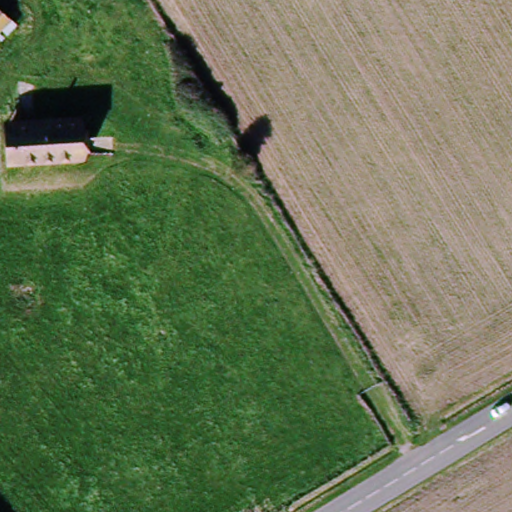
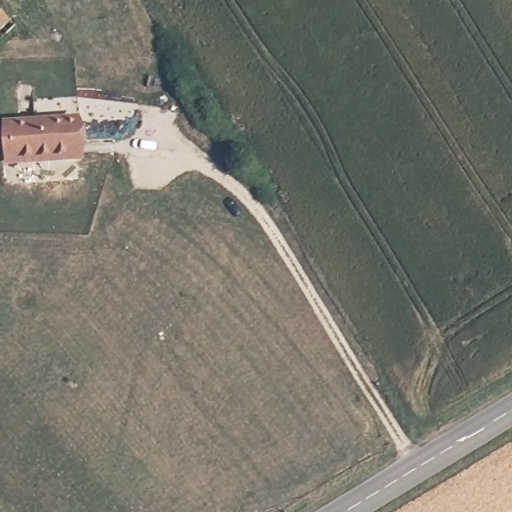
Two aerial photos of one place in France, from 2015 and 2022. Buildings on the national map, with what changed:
unchanged [(0,31),(0,13),(9,22),(0,31)]
unchanged [(5,117),(79,116),(78,159),(5,165),(5,117)]

